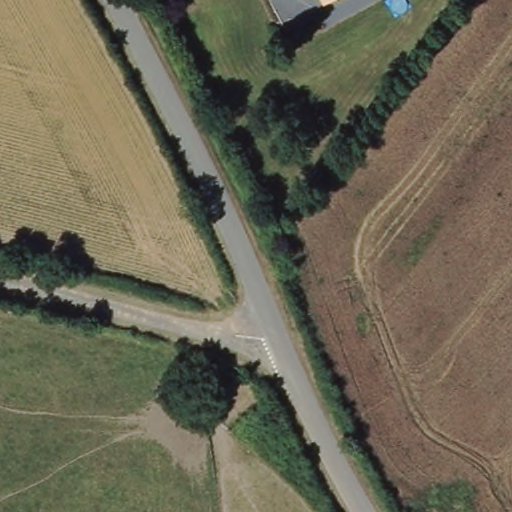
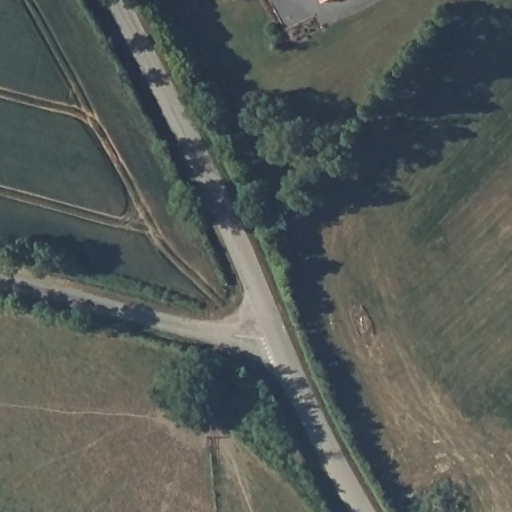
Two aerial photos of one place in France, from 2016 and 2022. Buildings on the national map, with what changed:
unchanged [(330,1),(329,0),(332,0),(330,1)]

